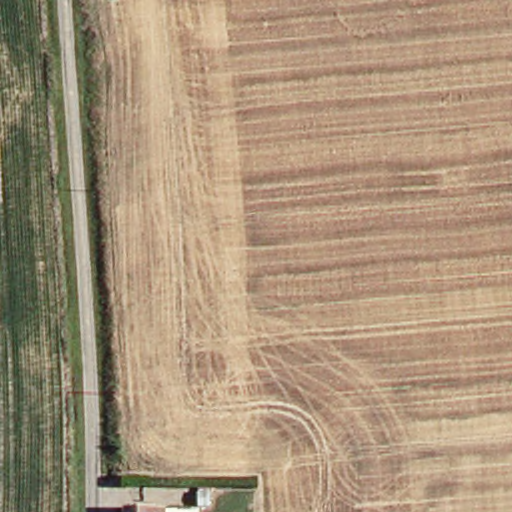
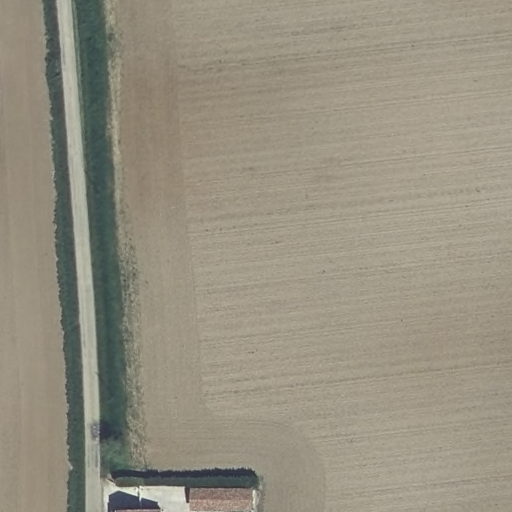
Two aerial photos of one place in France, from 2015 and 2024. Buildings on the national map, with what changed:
new [(195,512),(195,488),(257,490),(258,512),(195,512)]
unchanged [(166,512),(109,512),(109,511),(120,511),(166,511),(166,512)]

